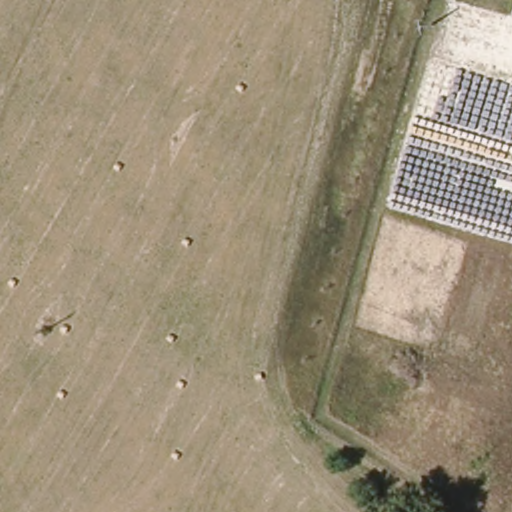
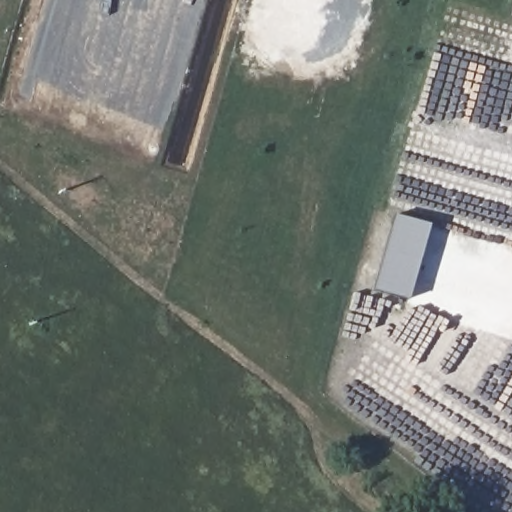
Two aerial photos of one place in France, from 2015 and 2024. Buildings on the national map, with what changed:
new [(408,301),(374,290),(394,215),(429,225),(408,301)]

